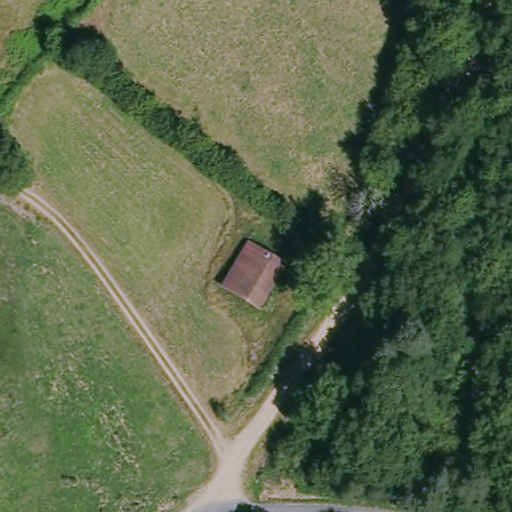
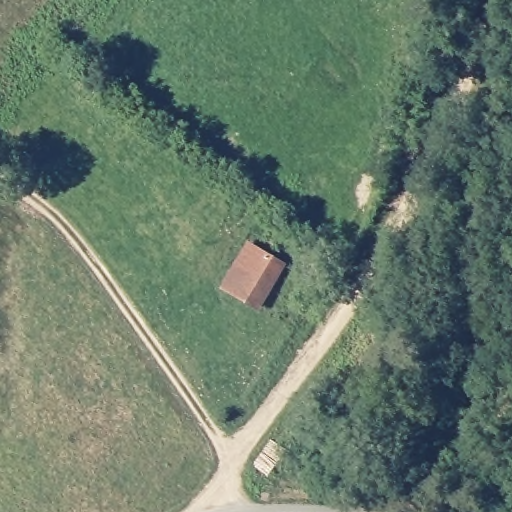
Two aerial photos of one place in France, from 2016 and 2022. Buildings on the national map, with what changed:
unchanged [(286,263),(260,305),(227,285),(252,244),(286,263)]

